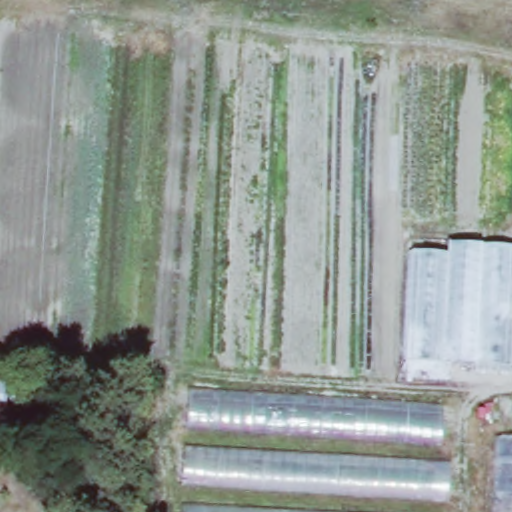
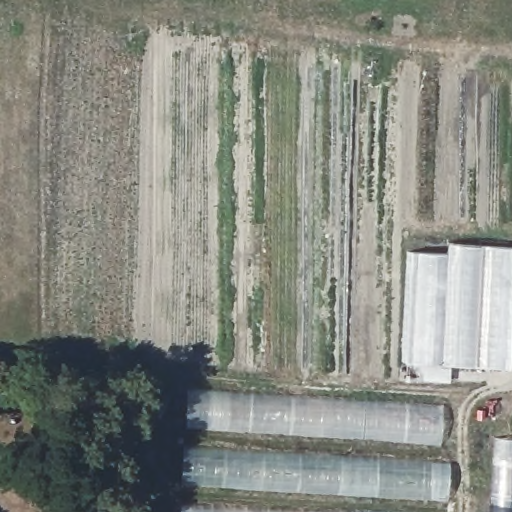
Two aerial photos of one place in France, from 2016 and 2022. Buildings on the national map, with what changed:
unchanged [(505,368),(441,365),(440,374),(405,373),(410,251),(446,253),(447,243),(511,245),(505,368)]
unchanged [(440,456),(450,458),(446,512),(184,512),(190,384),(442,397),(440,456)]
unchanged [(508,439),(512,439),(512,512),(492,512),(495,439),(508,439)]

